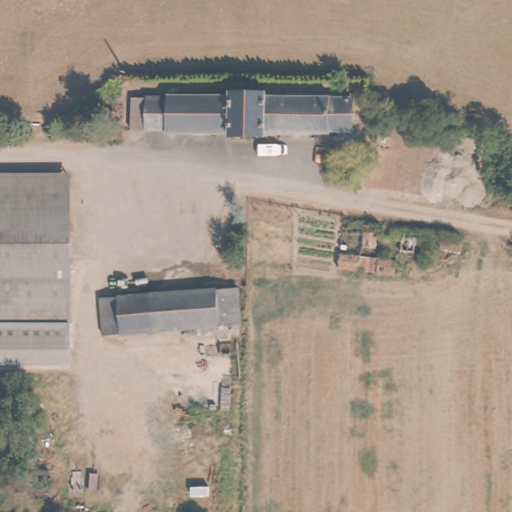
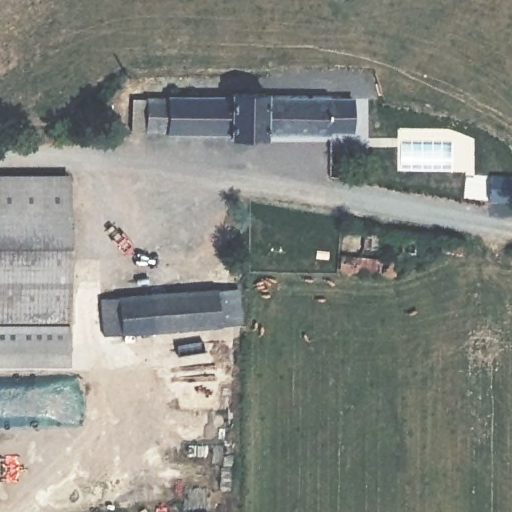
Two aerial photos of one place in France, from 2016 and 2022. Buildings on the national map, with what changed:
unchanged [(237,97),(272,97),(272,101),(274,135),(274,140),(237,140),(238,136),(153,135),(134,135),(134,101),(154,101),(237,101),(237,97)]
unchanged [(357,101),(357,115),(356,136),(274,135),(272,101),(357,101)]
unchanged [(69,300),(69,361),(15,361),(0,361),(0,174),(4,174),(71,174),(69,300)]
unchanged [(381,231),(381,245),(361,245),(361,231),(381,231)]
unchanged [(416,235),(417,250),(399,250),(399,235),(416,235)]
unchanged [(355,252),(354,274),(338,274),(339,252),(355,252)]
unchanged [(396,258),(396,274),(375,274),(376,258),(396,258)]
unchanged [(238,288),(240,325),(101,334),(98,298),(238,288)]

